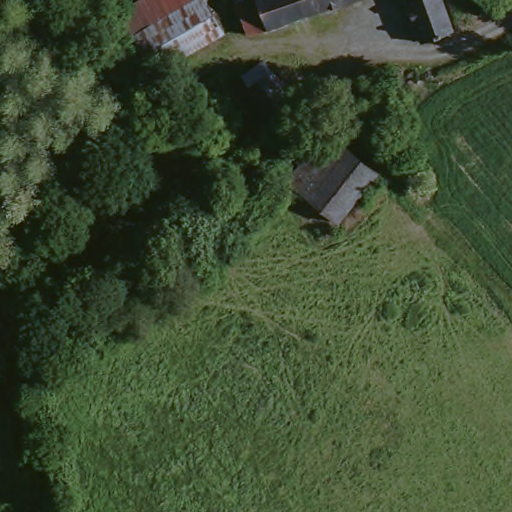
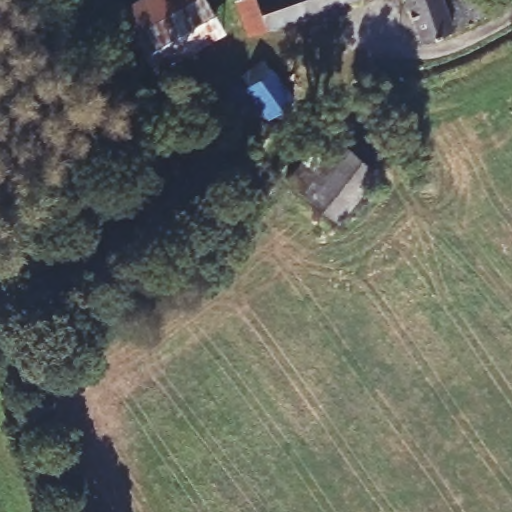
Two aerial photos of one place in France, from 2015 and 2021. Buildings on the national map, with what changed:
unchanged [(131,10),(147,0),(215,0),(229,28),(163,67),(131,10)]
unchanged [(240,0),(358,0),(268,30),(253,35),(240,0)]
unchanged [(417,0),(450,0),(459,27),(427,35),(417,0)]
unchanged [(254,65),(260,75),(264,71),(286,102),(261,121),(238,90),(240,88),(234,77),(254,65)]
unchanged [(346,220),(294,185),(293,182),(328,131),(382,166),(346,220)]

